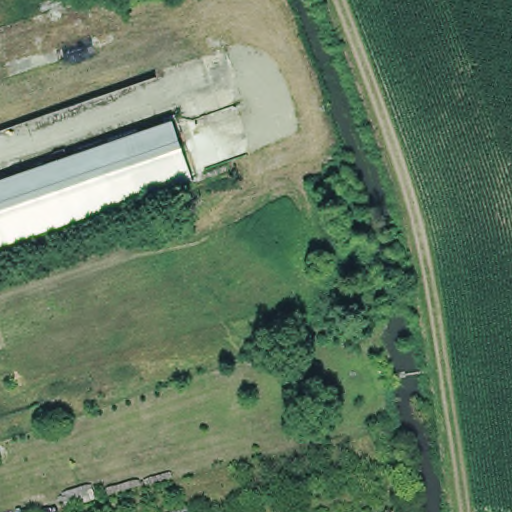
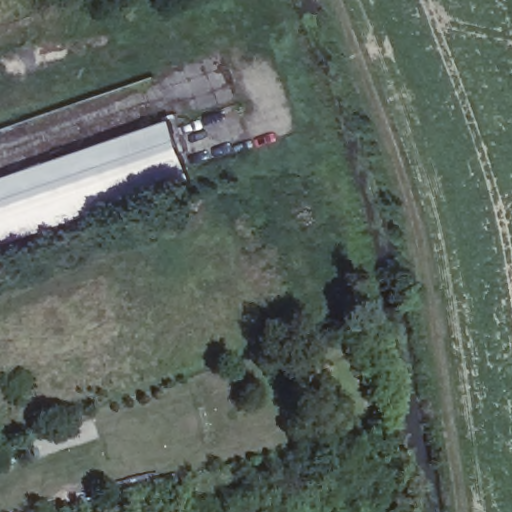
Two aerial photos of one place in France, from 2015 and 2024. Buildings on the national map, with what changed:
unchanged [(171,120),(191,179),(0,244),(0,179),(171,120)]

